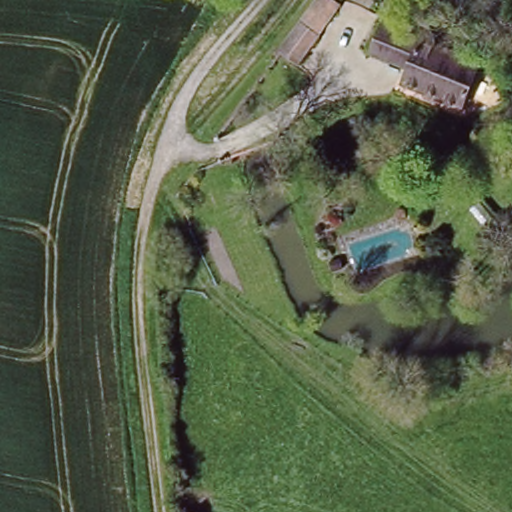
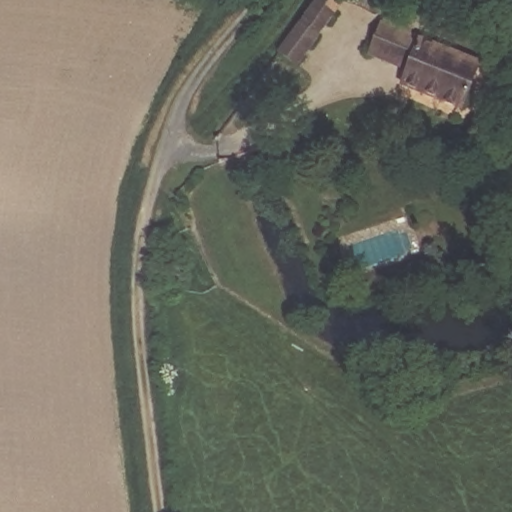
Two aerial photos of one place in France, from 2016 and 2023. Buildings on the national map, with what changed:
unchanged [(318,0),(343,0),(297,62),(279,50),(318,0)]
unchanged [(378,17),(443,41),(484,55),(462,108),(399,88),(402,75),(365,61),(378,17)]

